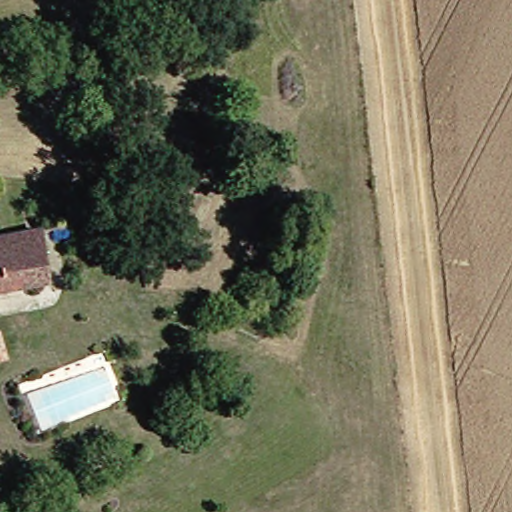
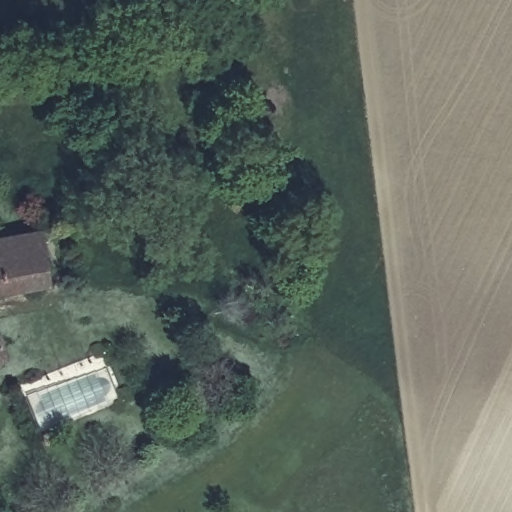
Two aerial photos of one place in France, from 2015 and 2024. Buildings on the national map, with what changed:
unchanged [(49,235),(57,285),(0,295),(0,243),(49,235)]
unchanged [(0,331),(7,357),(0,359),(0,331)]

